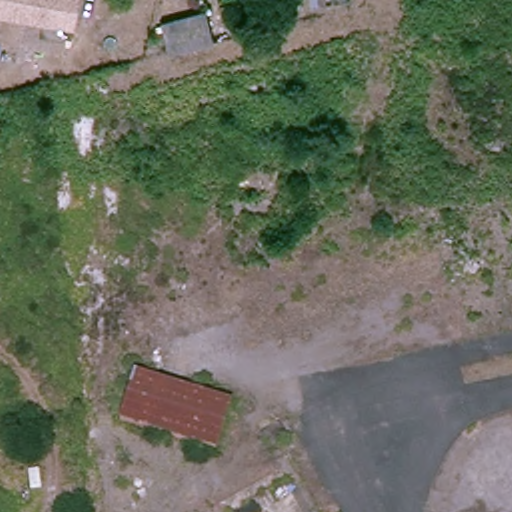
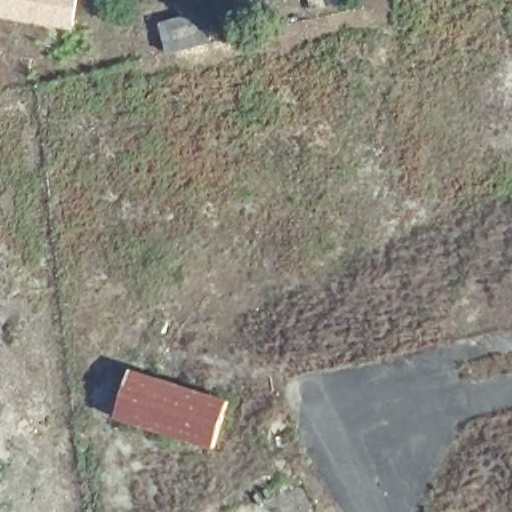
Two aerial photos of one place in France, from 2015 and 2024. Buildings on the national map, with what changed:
unchanged [(67,27),(0,16),(0,0),(71,0),(67,27)]
unchanged [(164,24),(209,12),(219,45),(171,58),(164,24)]
unchanged [(212,450),(125,423),(139,377),(227,401),(212,450)]

